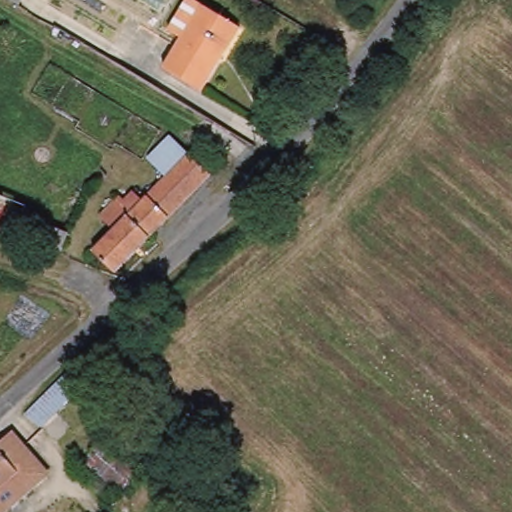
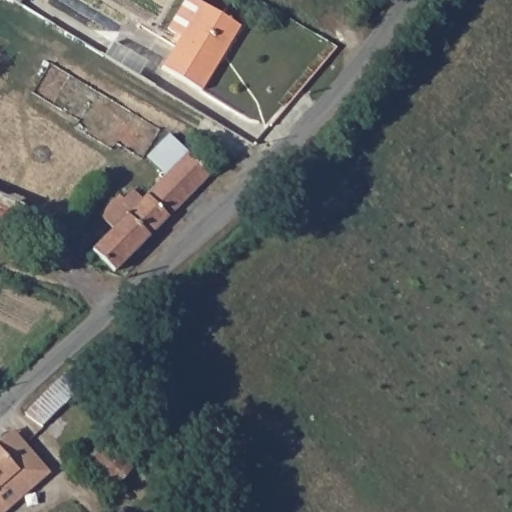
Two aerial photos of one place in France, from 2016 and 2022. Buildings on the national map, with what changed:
unchanged [(21,4),(13,0),(24,0),(21,4)]
unchanged [(164,24),(180,0),(196,0),(239,27),(202,90),(164,69),(184,35),(164,24)]
unchanged [(143,158),(165,137),(185,158),(195,148),(227,181),(217,190),(209,182),(104,279),(82,255),(104,235),(91,221),(111,203),(114,206),(125,197),(134,206),(163,179),(143,158)]
unchanged [(111,373),(100,383),(95,378),(49,419),(29,410),(91,353),(111,373)]
unchanged [(50,472),(4,512),(0,512),(0,438),(9,430),(50,472)]
unchanged [(131,466),(108,490),(79,467),(102,440),(131,466)]

